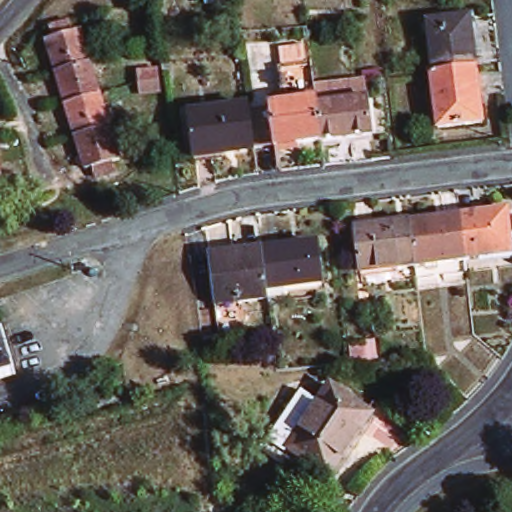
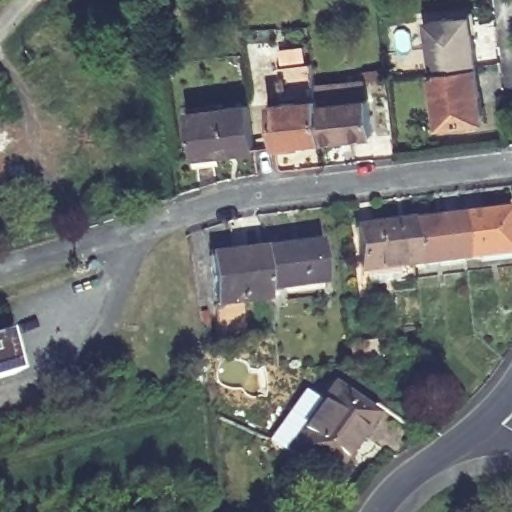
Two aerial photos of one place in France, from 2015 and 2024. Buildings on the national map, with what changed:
unchanged [(433,71),(428,21),(469,16),(475,66),(433,71)]
demolished [(120,162),(113,164),(116,174),(95,181),(91,171),(85,172),(46,45),(54,42),(50,32),(72,27),(74,35),(80,32),(120,162)]
unchanged [(307,67),(312,66),(318,111),(323,147),(275,152),(269,107),(284,106),(279,71),(282,71),(279,52),(304,49),(307,67)]
unchanged [(433,71),(475,66),(481,122),(438,127),(431,72),(433,71)]
unchanged [(318,111),(370,104),(373,141),(323,147),(318,111)]
unchanged [(196,159),(190,114),(248,106),(255,151),(196,159)]
unchanged [(508,212),(512,246),(512,255),(466,261),(462,220),(462,219),(508,212)]
unchanged [(416,269),(411,226),(462,220),(466,261),(466,263),(416,269)]
unchanged [(362,275),(357,232),(411,226),(416,269),(362,275)]
unchanged [(318,242),(323,288),(268,295),(263,249),(318,242)]
unchanged [(210,256),(263,249),(268,295),(269,305),(245,307),(248,337),(222,340),(210,256)]
unchanged [(16,373),(0,378),(0,333),(3,332),(16,373)]
unchanged [(380,362),(353,366),(348,344),(376,340),(380,362)]
unchanged [(304,396),(321,407),(333,391),(374,420),(332,480),(273,441),(304,396)]

